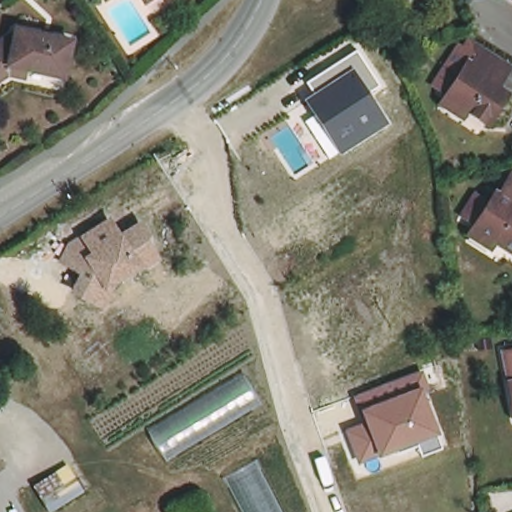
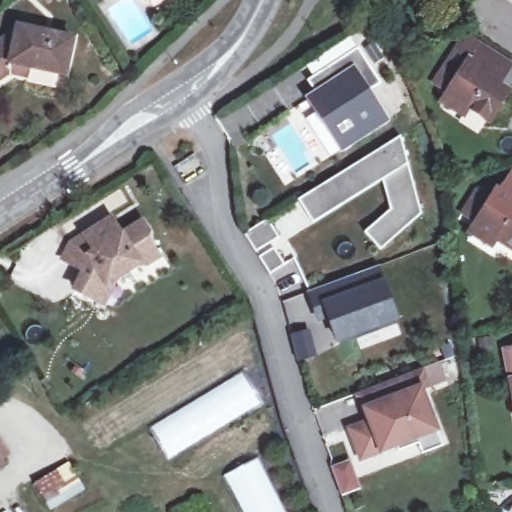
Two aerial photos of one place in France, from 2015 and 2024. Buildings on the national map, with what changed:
unchanged [(148,1),(147,0),(150,0),(148,1)]
unchanged [(25,26),(80,38),(73,75),(20,63),(17,72),(0,83),(0,48),(17,36),(23,38),(25,26)]
unchanged [(453,97),(457,93),(442,84),(455,64),(467,45),(475,50),(479,43),(487,49),(512,64),(512,67),(502,83),(512,90),(512,92),(509,96),(493,122),(472,109),(467,117),(449,105),(453,97)]
unchanged [(305,122),(315,114),(304,98),(312,92),(307,82),(355,50),(378,85),(369,91),(388,121),(340,152),(339,151),(329,157),(305,122)]
new [(400,136),(408,165),(422,215),(380,251),(364,232),(390,209),(382,182),(312,224),(297,200),(400,136)]
unchanged [(487,227),(473,218),(485,199),(499,208),(507,196),(509,197),(512,193),(512,249),(503,243),(498,250),(479,237),(483,230),(487,227)]
unchanged [(70,291),(78,273),(57,262),(68,242),(110,217),(121,233),(142,218),(161,259),(145,270),(142,265),(117,282),(103,308),(70,291)]
new [(305,292),(379,266),(383,279),(398,319),(400,323),(340,347),(337,344),(328,323),(317,323),(305,292)]
unchanged [(512,354),(512,393),(505,355),(512,354)]
unchanged [(421,455),(417,445),(397,453),(395,448),(357,464),(345,429),(361,423),(352,396),(421,370),(428,390),(424,392),(439,433),(436,434),(440,447),(421,455)]
unchanged [(262,402),(167,461),(147,429),(243,372),(262,402)]
unchanged [(5,465),(0,468),(0,457),(5,465)]
unchanged [(241,512),(223,478),(258,459),(284,512),(241,512)]
unchanged [(95,493),(63,512),(52,512),(37,484),(73,460),(95,493)]

